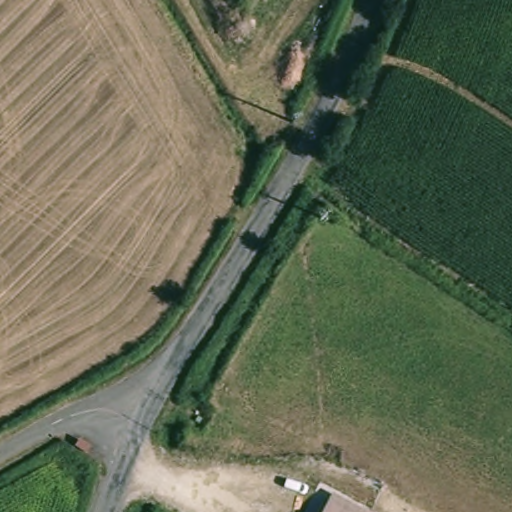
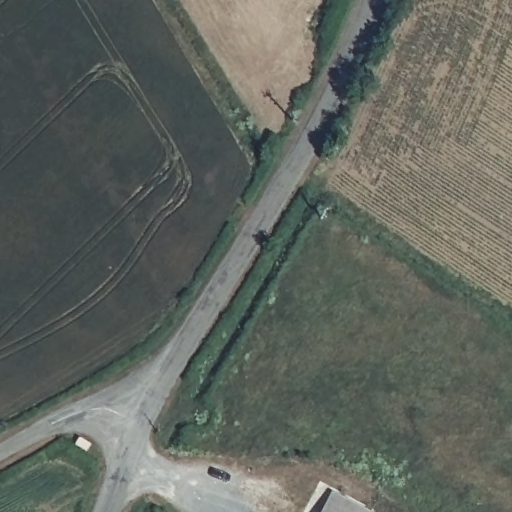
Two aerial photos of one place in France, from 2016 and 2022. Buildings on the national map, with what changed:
unchanged [(365,512),(323,512),(332,495),(365,512)]

